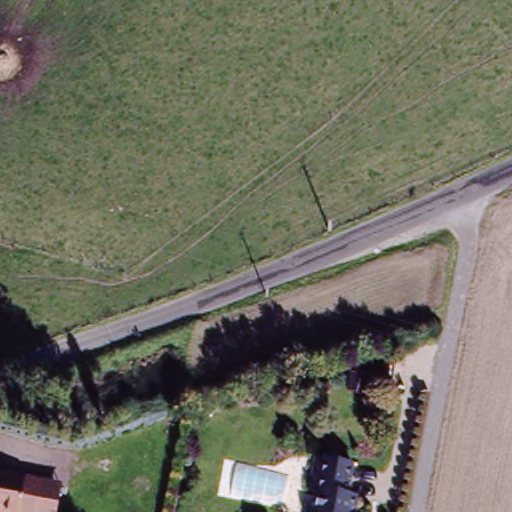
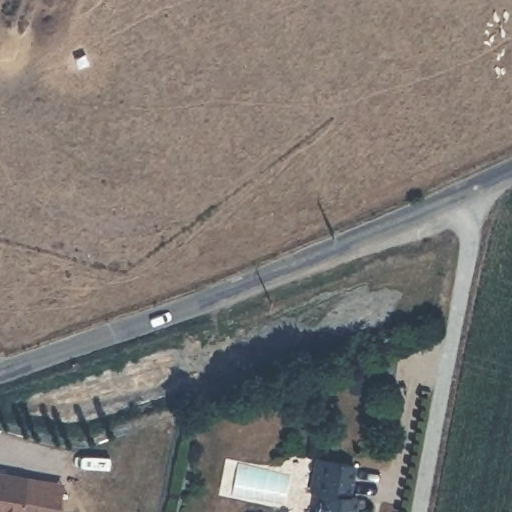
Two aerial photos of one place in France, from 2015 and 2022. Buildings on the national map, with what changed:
unchanged [(318,486),(310,485),(316,454),(350,459),(345,491),(355,493),(352,512),(314,512),(318,486)]
unchanged [(52,512),(4,512),(1,511),(1,512),(0,512),(0,471),(58,481),(52,512)]

